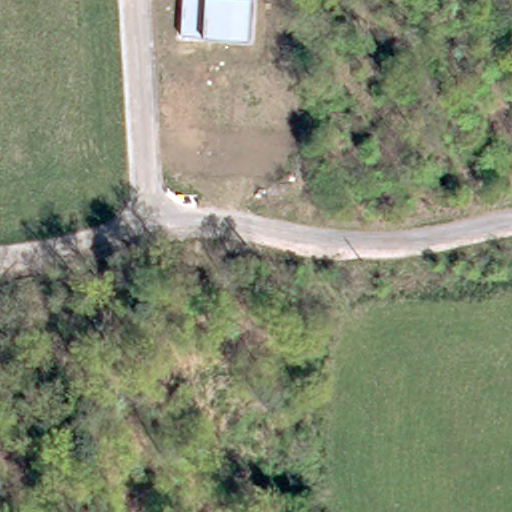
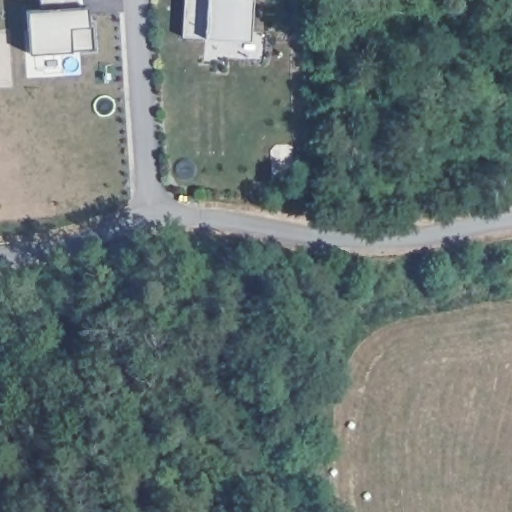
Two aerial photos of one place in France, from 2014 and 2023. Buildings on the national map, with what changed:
new [(29,30),(28,10),(41,9),(41,0),(85,0),(85,6),(88,6),(90,15),(90,25),(94,25),(95,50),(40,53),(30,54),(29,30)]
unchanged [(251,41),(180,36),(182,0),(253,0),(251,41)]

